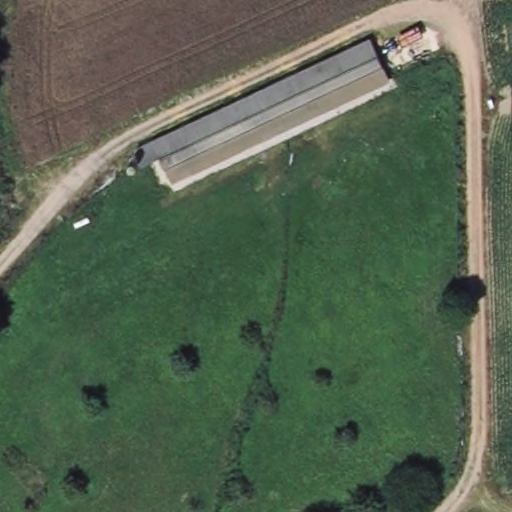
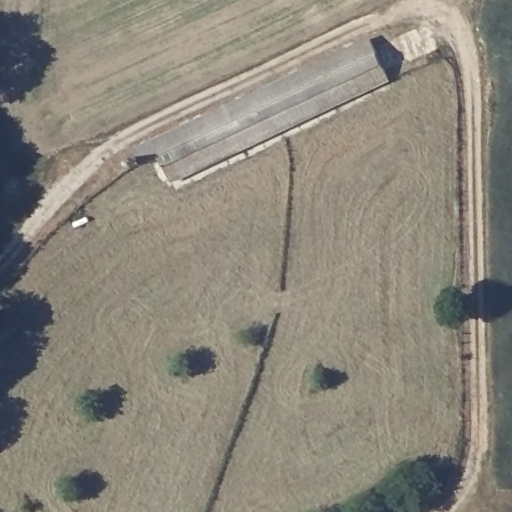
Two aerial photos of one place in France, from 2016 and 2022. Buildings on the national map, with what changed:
unchanged [(371,44),(389,82),(172,185),(159,160),(141,169),(135,154),(371,44)]

